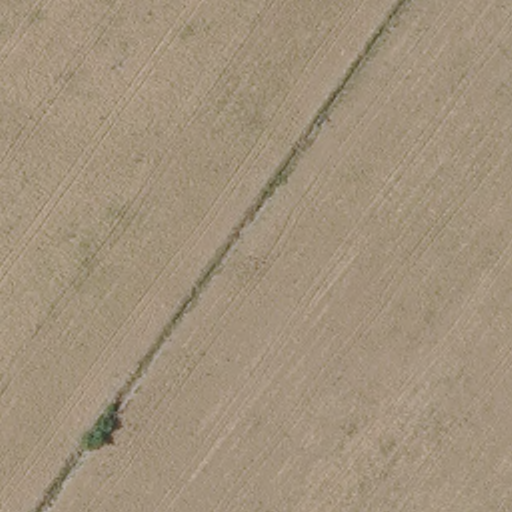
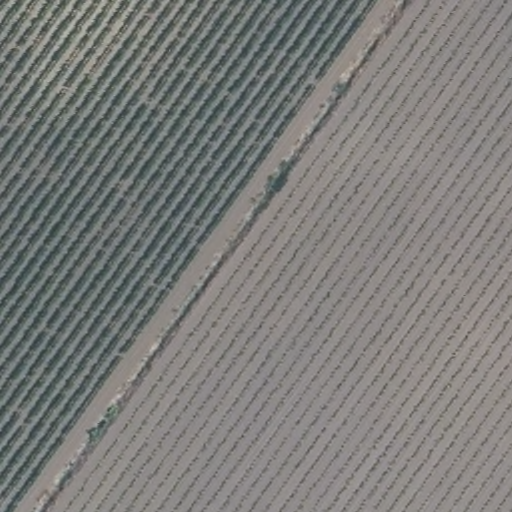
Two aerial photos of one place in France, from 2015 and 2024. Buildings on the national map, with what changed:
[]

